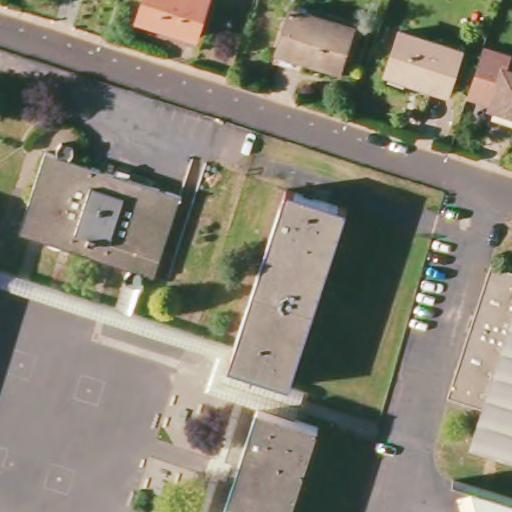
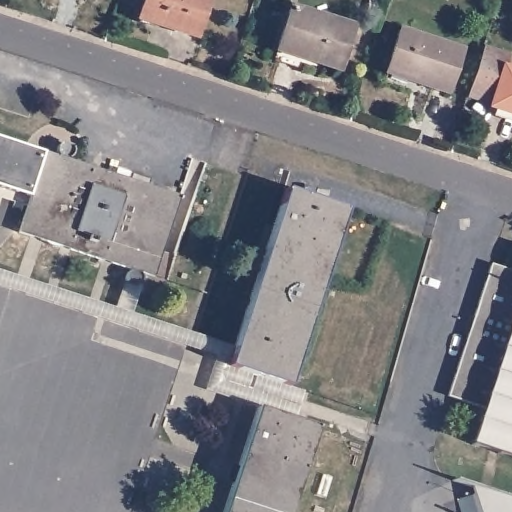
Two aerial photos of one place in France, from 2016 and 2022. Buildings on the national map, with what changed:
unchanged [(137,21),(144,0),(206,0),(193,39),(137,21)]
unchanged [(342,72),(279,52),(294,9),(355,29),(342,72)]
unchanged [(447,95),(415,85),(417,79),(387,70),(399,33),(460,53),(447,95)]
unchanged [(482,59),(485,50),(511,58),(508,70),(512,71),(512,114),(495,109),(496,106),(470,98),(482,59)]
new [(0,136),(45,151),(31,196),(0,185),(0,136)]
unchanged [(45,151),(53,157),(59,141),(74,147),(69,160),(112,174),(114,168),(131,172),(128,179),(178,198),(154,280),(143,274),(137,287),(132,284),(124,310),(111,306),(121,277),(127,279),(130,269),(20,234),(45,151)]
unchanged [(288,190),(345,210),(287,385),(232,370),(288,190)]
unchanged [(475,448),(486,412),(450,400),(492,269),(512,275),(512,459),(475,448)]
unchanged [(256,413),(316,434),(290,512),(223,512),(256,413)]
unchanged [(472,487),(512,501),(512,512),(478,512),(472,487)]

